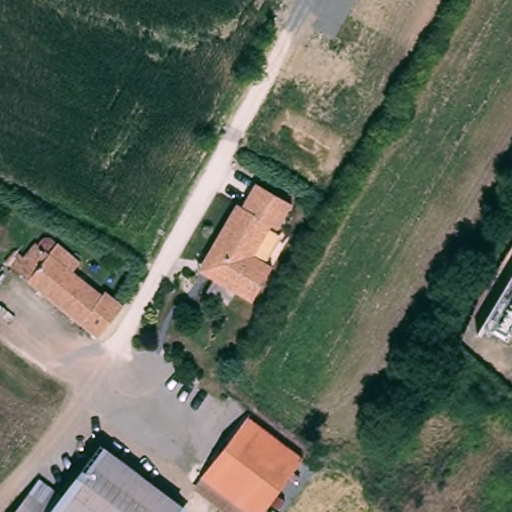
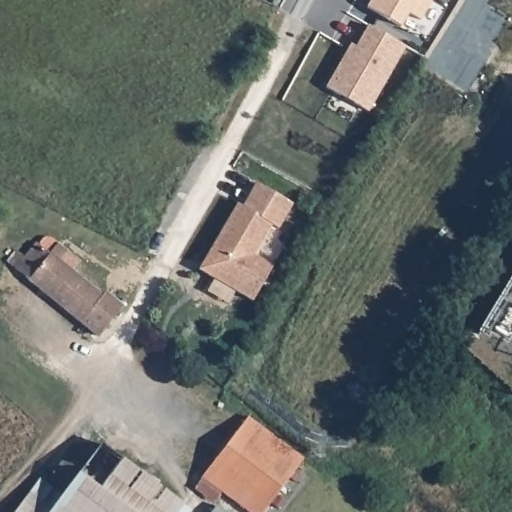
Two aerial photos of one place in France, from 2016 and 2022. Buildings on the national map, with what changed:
new [(420,20),(409,14),(401,27),(367,8),(371,0),(432,0),(420,20)]
new [(351,44),(356,46),(368,26),(406,47),(369,111),(327,87),(351,44)]
unchanged [(398,129),(385,121),(394,105),(407,113),(398,129)]
unchanged [(209,262),(242,204),(247,207),(261,183),(297,204),(283,229),(276,225),(258,256),(277,267),(257,301),(212,275),(204,270),(209,262)]
unchanged [(106,296),(110,292),(128,306),(104,337),(11,262),(20,251),(29,258),(40,243),(43,245),(43,244),(43,243),(44,242),(44,241),(46,240),(47,239),(49,238),(51,238),(54,238),(56,239),(85,263),(77,272),(106,296)]
unchanged [(207,477),(253,417),(308,460),(268,512),(231,512),(199,488),(207,477)]
unchanged [(186,505),(180,512),(55,512),(66,497),(106,445),(186,505)]
unchanged [(21,512),(45,480),(66,497),(55,512),(21,512)]

